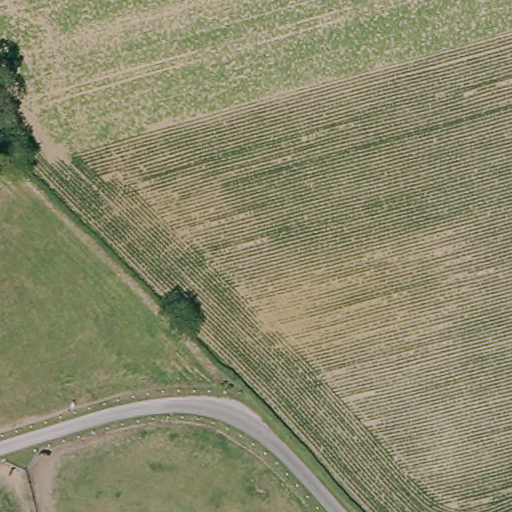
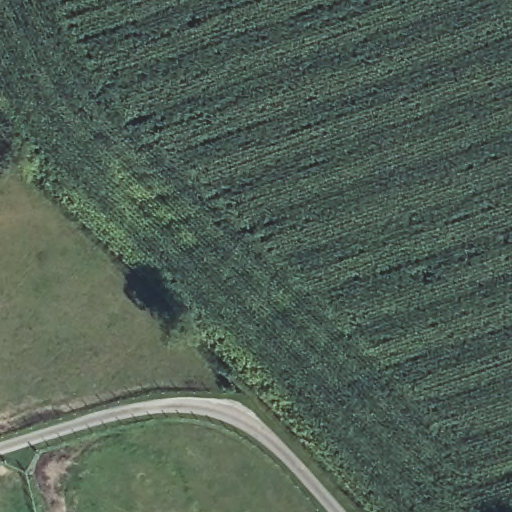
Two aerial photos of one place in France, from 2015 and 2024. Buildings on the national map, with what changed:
[]

